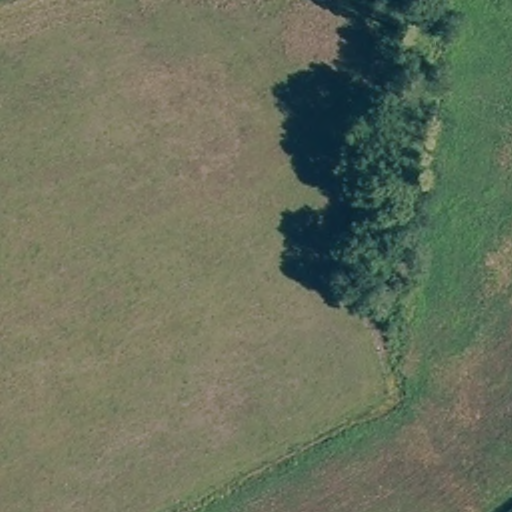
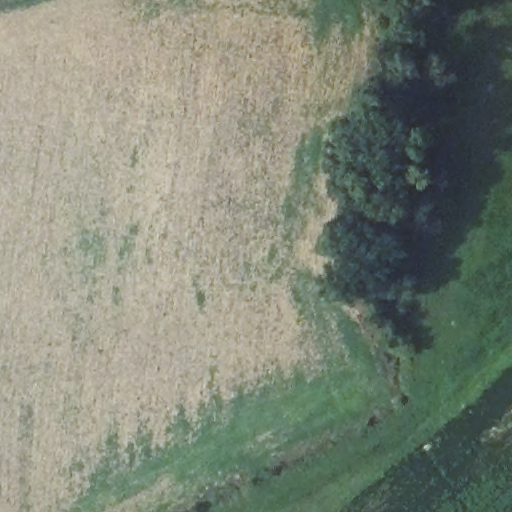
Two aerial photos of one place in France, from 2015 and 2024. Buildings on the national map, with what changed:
[]

